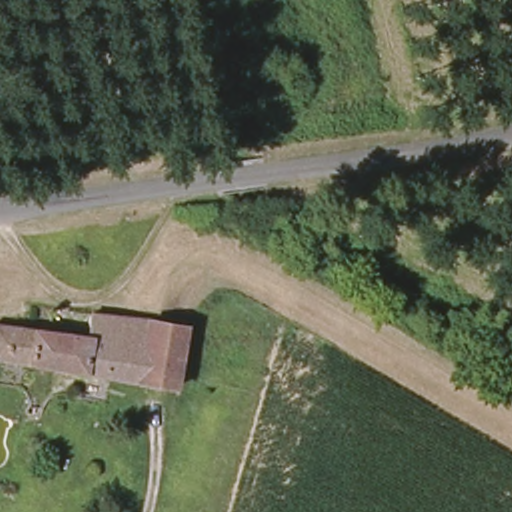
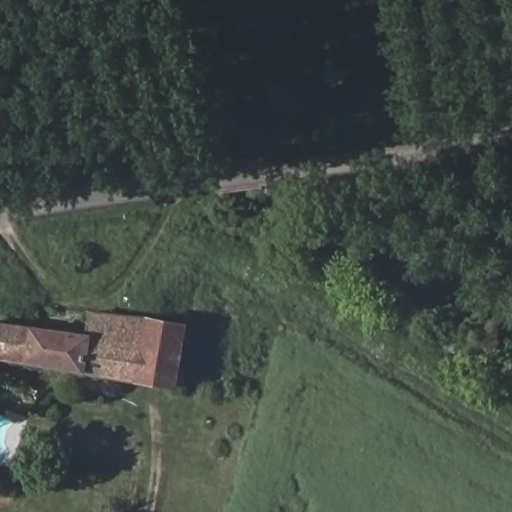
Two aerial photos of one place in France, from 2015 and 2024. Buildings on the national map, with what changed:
unchanged [(189,328),(177,388),(0,359),(0,325),(90,336),(94,316),(147,321),(189,328)]

